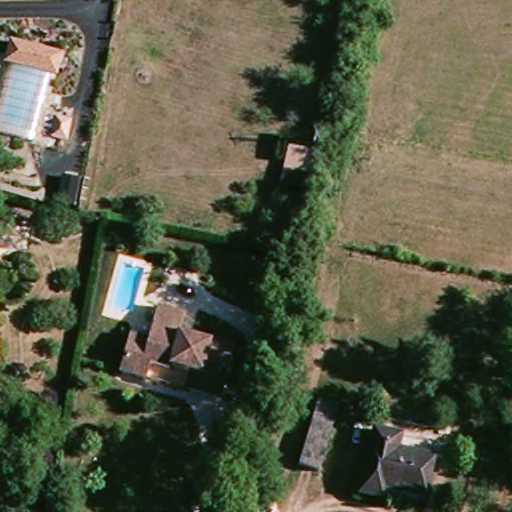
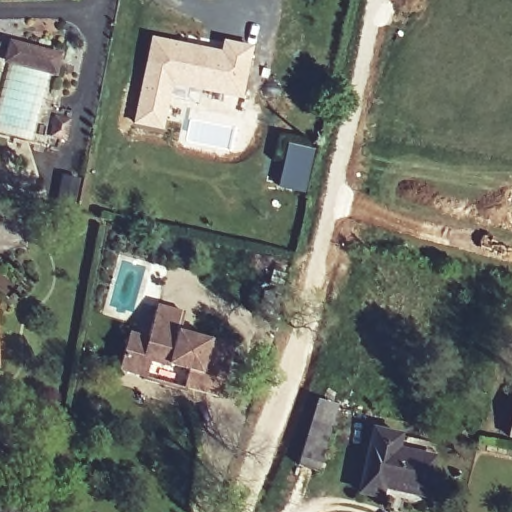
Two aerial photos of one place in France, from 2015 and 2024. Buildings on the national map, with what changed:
new [(221,51),(223,41),(252,47),(242,100),(173,86),(163,130),(133,124),(151,37),(221,51)]
unchanged [(66,55),(60,77),(6,65),(14,38),(66,55)]
unchanged [(74,110),(68,144),(53,140),(61,107),(74,110)]
unchanged [(308,194),(279,188),(286,147),(317,153),(308,194)]
unchanged [(175,332),(231,343),(220,393),(183,387),(181,391),(143,384),(144,379),(119,373),(127,335),(147,339),(152,310),(178,314),(175,332)]
unchanged [(334,409),(321,469),(303,466),(317,404),(334,409)]
unchanged [(512,415),(512,441),(506,440),(512,415)]
unchanged [(432,466),(425,497),(387,487),(383,503),(359,497),(374,440),(397,445),(394,456),(432,466)]

